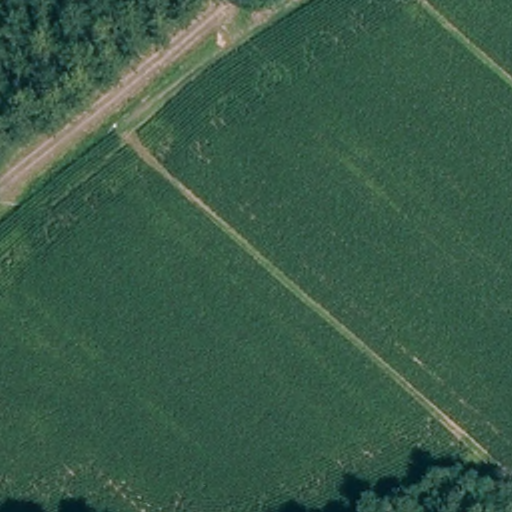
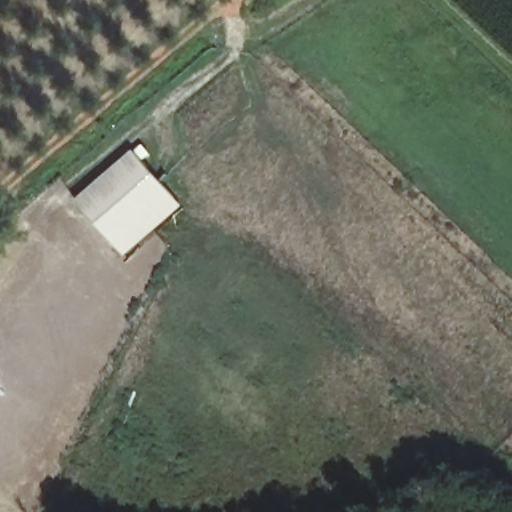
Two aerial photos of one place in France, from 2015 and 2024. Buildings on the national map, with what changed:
new [(183,205),(126,255),(77,200),(135,150),(183,205)]

